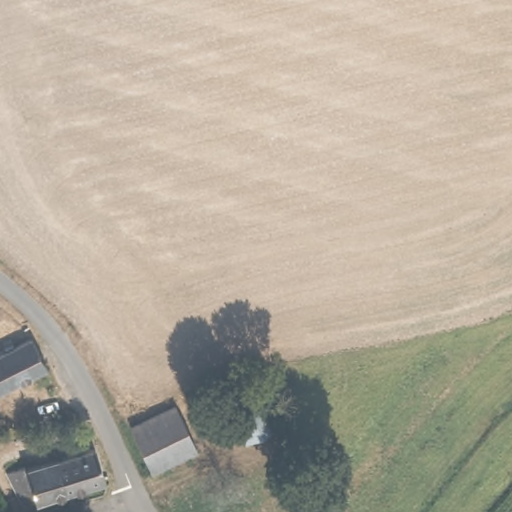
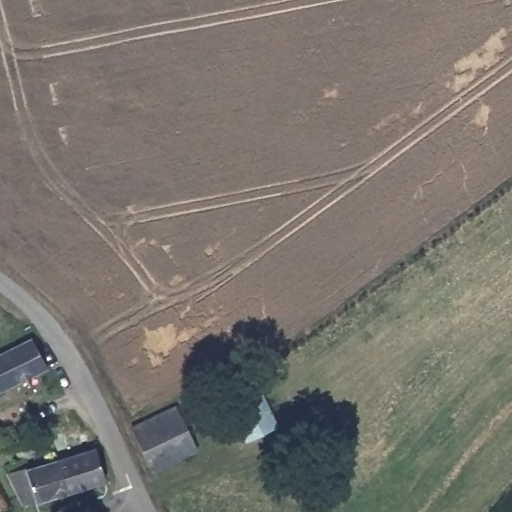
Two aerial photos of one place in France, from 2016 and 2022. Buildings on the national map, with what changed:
unchanged [(0,389),(0,350),(26,338),(45,368),(0,389)]
unchanged [(251,384),(272,427),(240,441),(220,396),(251,384)]
unchanged [(178,404),(198,449),(151,473),(130,427),(178,404)]
unchanged [(17,465),(30,461),(28,453),(44,447),(47,454),(61,451),(67,449),(102,439),(114,476),(79,487),(81,497),(76,498),(74,490),(31,504),(17,465)]

